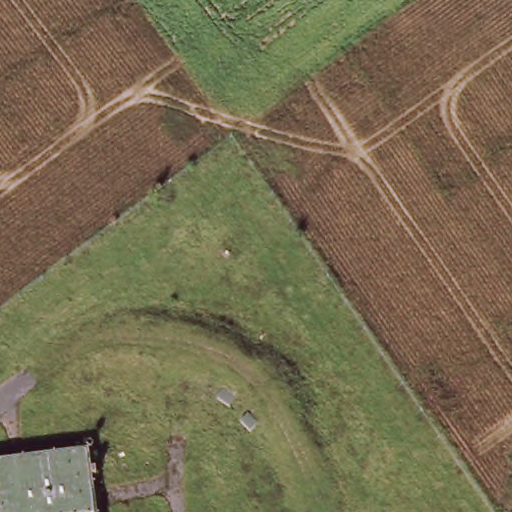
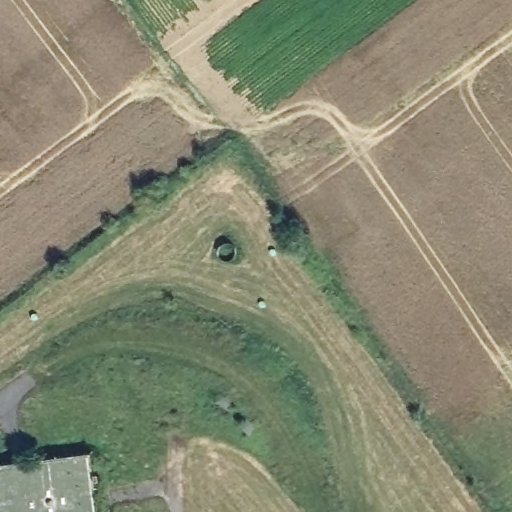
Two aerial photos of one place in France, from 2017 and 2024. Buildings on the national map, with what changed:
unchanged [(0,512),(0,464),(89,453),(97,512),(0,512)]

